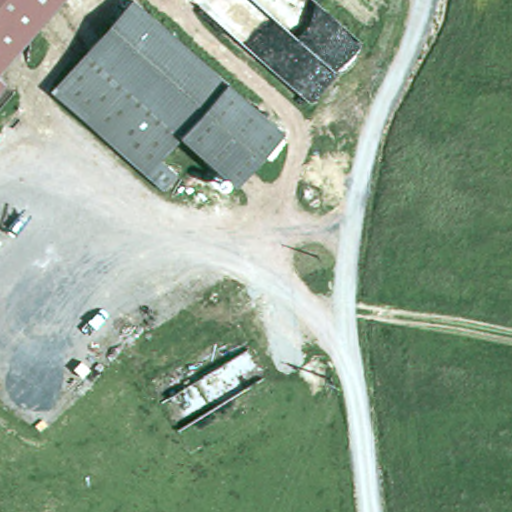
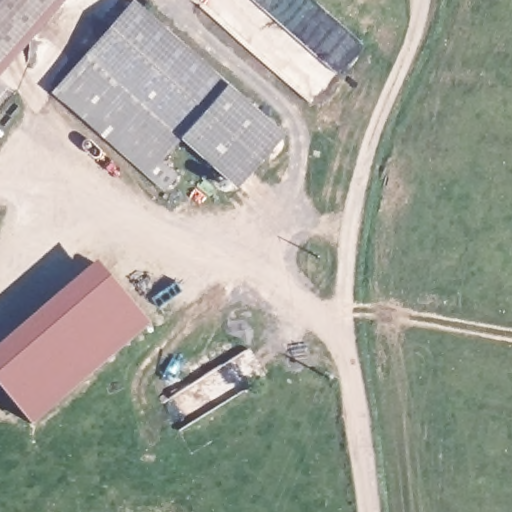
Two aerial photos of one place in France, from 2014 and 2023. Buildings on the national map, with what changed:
unchanged [(64,0),(0,73),(0,0),(64,0)]
unchanged [(186,138),(164,161),(178,175),(166,189),(54,91),(134,1),(286,133),(238,185),(186,138)]
unchanged [(6,83),(0,90),(0,78),(6,83)]
new [(150,327),(31,429),(0,393),(0,346),(96,263),(150,327)]

